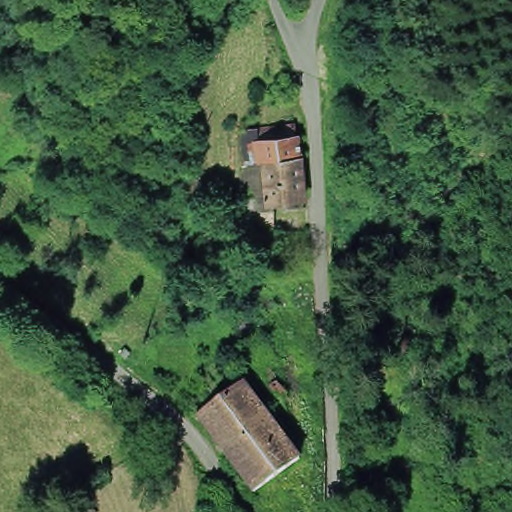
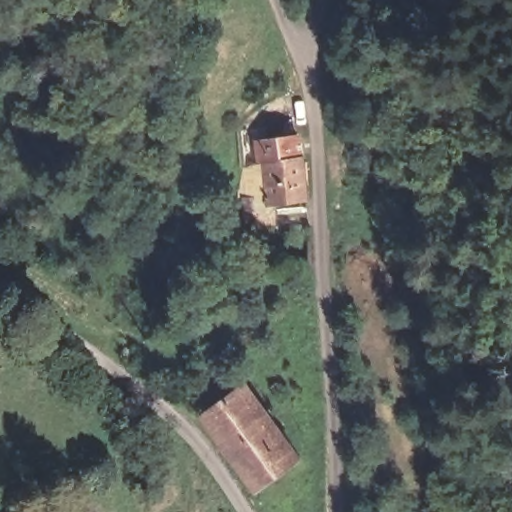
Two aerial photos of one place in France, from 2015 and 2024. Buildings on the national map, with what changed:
unchanged [(236,235),(235,201),(229,202),(237,170),(232,135),(237,134),(252,132),(295,127),(296,140),(298,155),(301,201),(269,209),(268,234),(236,235)]
unchanged [(207,179),(217,203),(203,209),(196,212),(185,189),(192,186),(207,179)]
unchanged [(245,386),(266,416),(220,446),(199,417),(245,386)]
unchanged [(266,416),(301,464),(255,494),(220,446),(266,416)]

